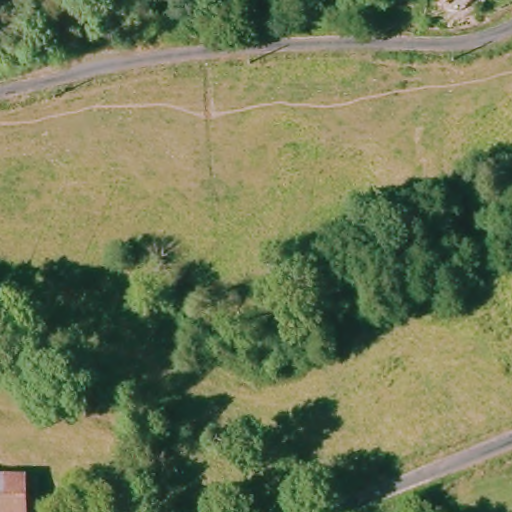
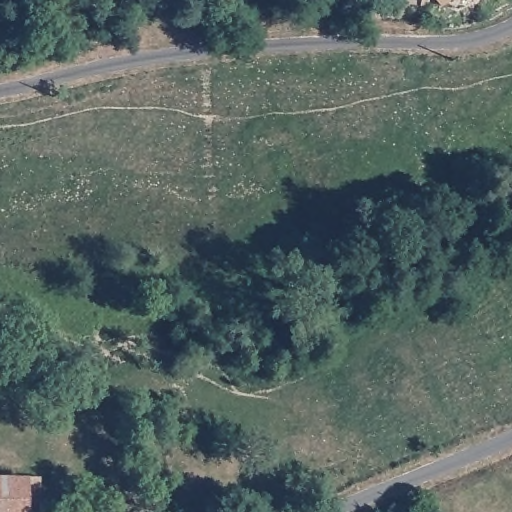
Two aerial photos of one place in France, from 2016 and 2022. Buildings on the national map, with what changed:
unchanged [(442,0),(439,4),(434,0),(442,0)]
unchanged [(29,485),(30,512),(0,512),(0,485),(29,485)]

